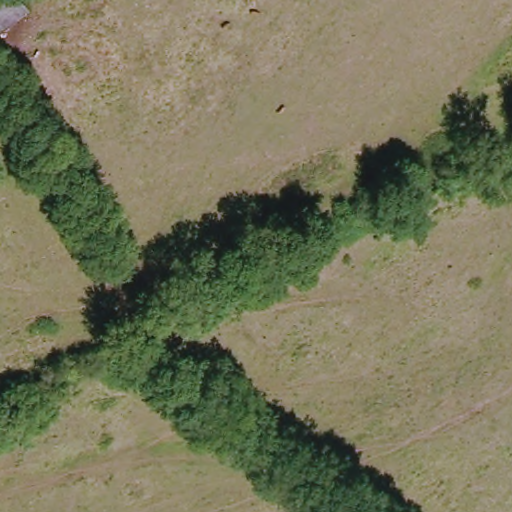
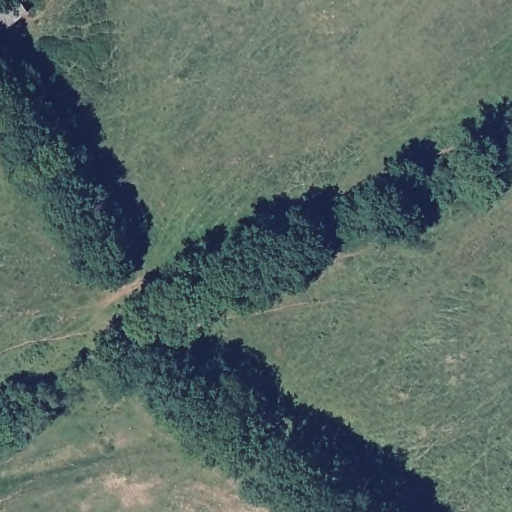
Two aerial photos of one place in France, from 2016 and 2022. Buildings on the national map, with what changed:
unchanged [(16,0),(23,7),(0,34),(0,0),(16,0)]

